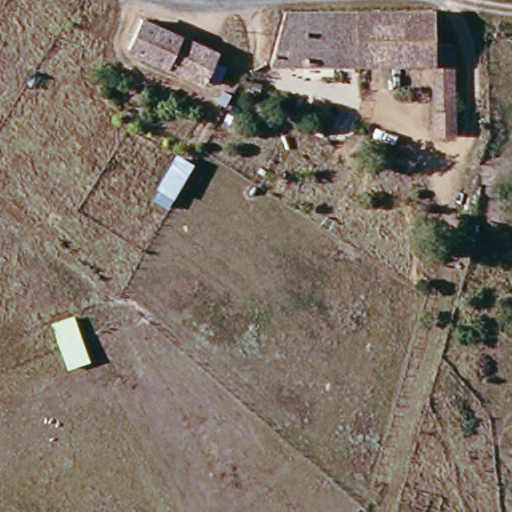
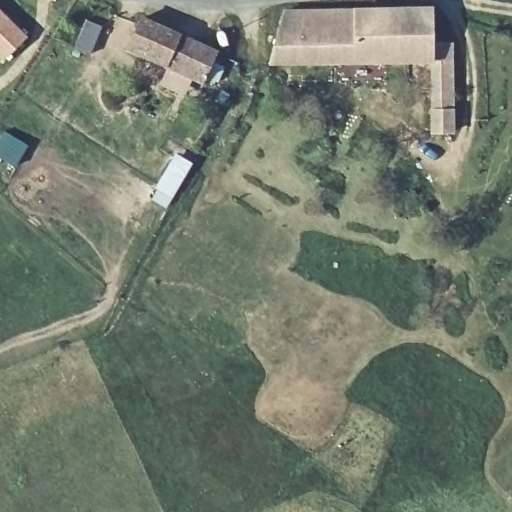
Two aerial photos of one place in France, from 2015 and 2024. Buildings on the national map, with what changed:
new [(0,10),(28,38),(5,62),(0,57),(0,10)]
unchanged [(271,64),(285,11),(435,10),(434,63),(271,64)]
unchanged [(215,55),(203,82),(128,46),(141,20),(215,55)]
unchanged [(434,133),(434,63),(455,63),(455,133),(434,133)]
unchanged [(322,115),(335,119),(329,136),(355,145),(350,158),(312,145),(322,115)]
demolished [(89,361),(68,369),(52,324),(71,316),(89,361)]

